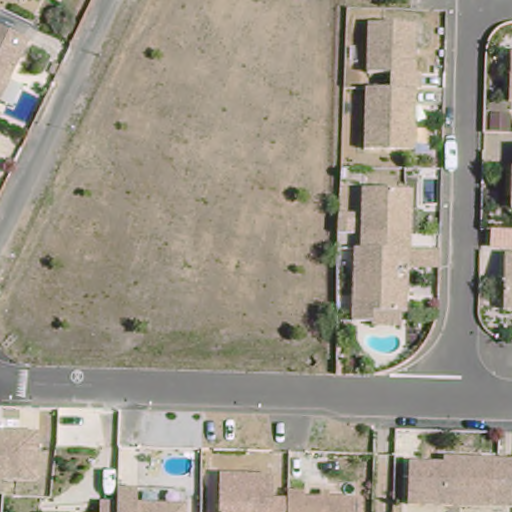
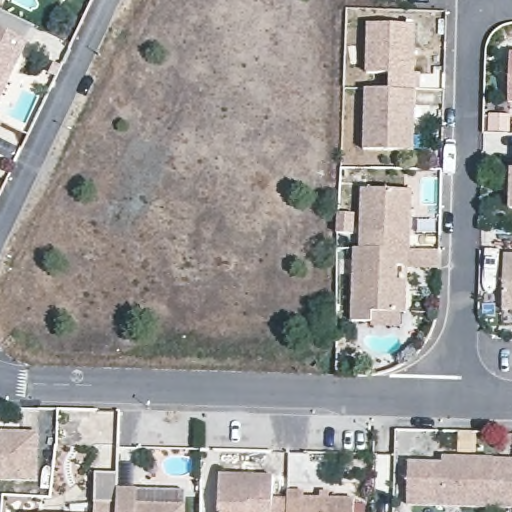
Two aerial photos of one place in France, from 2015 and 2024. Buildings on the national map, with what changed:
unchanged [(412,88),(385,87),(386,71),(363,70),(365,20),(412,22),(410,71),(415,71),(415,88),(412,88)]
unchanged [(25,38),(12,64),(5,61),(0,72),(0,26),(25,38)]
unchanged [(512,46),(512,95),(510,95),(512,46)]
unchanged [(412,88),(411,105),(410,122),(410,149),(360,147),(362,86),(385,87),(412,88)]
unchanged [(507,163),(512,163),(512,206),(510,206),(510,193),(505,193),(505,181),(507,163)]
unchanged [(407,242),(361,240),(364,181),(412,183),(410,242),(407,242)]
unchanged [(407,242),(407,259),(405,281),(405,305),(372,304),(371,314),(351,313),(355,240),(361,240),(407,242)]
unchanged [(502,248),(512,248),(512,304),(500,304),(500,296),(502,248)]
unchanged [(40,432),(37,481),(0,480),(0,431),(40,432)]
unchanged [(410,460),(444,461),(444,455),(512,455),(512,504),(409,503),(410,460)]
unchanged [(220,469),(274,471),(274,493),(289,493),(288,512),(219,512),(220,469)]
unchanged [(118,498),(119,485),(138,485),(186,486),(185,501),(185,512),(118,512),(118,498)]
unchanged [(289,493),(289,486),(305,486),(305,492),(322,493),(322,487),(329,487),(329,493),(355,493),(355,512),(288,512),(289,493)]
unchanged [(101,498),(118,498),(118,512),(101,512),(101,498)]

